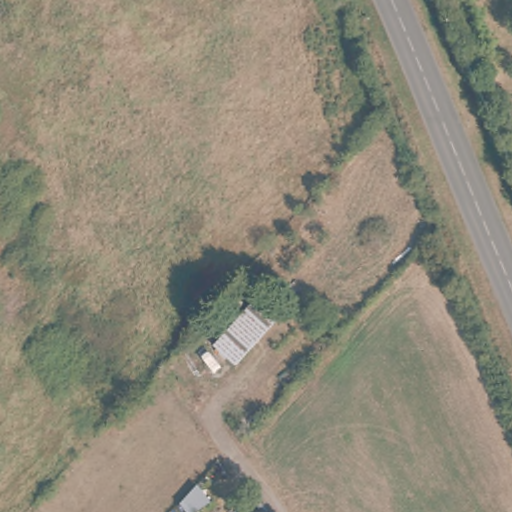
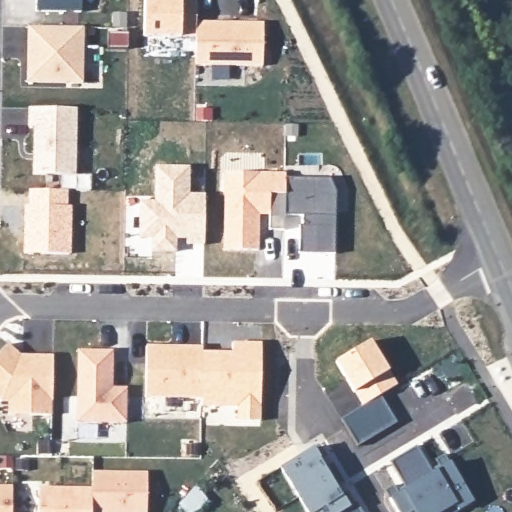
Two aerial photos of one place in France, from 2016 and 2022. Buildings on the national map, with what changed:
new [(35,11),(35,0),(82,0),(82,12),(35,11)]
new [(194,38),(181,37),(143,36),(144,0),(197,0),(196,20),(264,21),(264,66),(195,65),(194,38)]
new [(83,84),(26,83),(27,25),(83,27),(83,84)]
new [(77,175),(90,175),(90,190),(45,190),(45,175),(32,175),(33,127),(27,126),(27,107),(77,108),(77,175)]
new [(188,244),(188,233),(177,232),(177,250),(154,250),(154,238),(140,237),(140,201),(155,202),(155,166),(190,166),(190,194),(204,194),(204,244),(188,244)]
new [(298,254),(298,215),(260,213),(259,251),(224,251),(225,172),(284,173),(285,177),(334,179),(334,254),(298,254)]
demolished [(237,326),(262,296),(284,315),(223,387),(196,348),(224,315),(237,326)]
new [(359,445),(342,418),(363,406),(336,361),(371,340),(397,385),(379,395),(396,422),(359,445)]
new [(236,422),(236,407),(201,406),(201,400),(144,398),(145,345),(202,345),(203,351),(231,351),(231,341),(262,341),(262,421),(236,422)]
new [(8,414),(8,401),(1,401),(0,401),(0,352),(9,343),(20,353),(54,355),(54,415),(8,414)]
new [(76,422),(77,349),(113,350),(112,387),(128,387),(127,423),(76,422)]
new [(457,512),(396,512),(388,499),(406,488),(390,461),(417,445),(435,470),(449,462),(474,502),(457,512)]
new [(279,467),(314,447),(326,468),(332,463),(343,482),(337,486),(350,507),(357,503),(361,512),(306,512),(279,467)]
new [(39,487),(91,488),(92,470),(148,472),(147,512),(38,512),(39,487)]
new [(13,485),(12,512),(0,512),(0,485),(13,485)]

